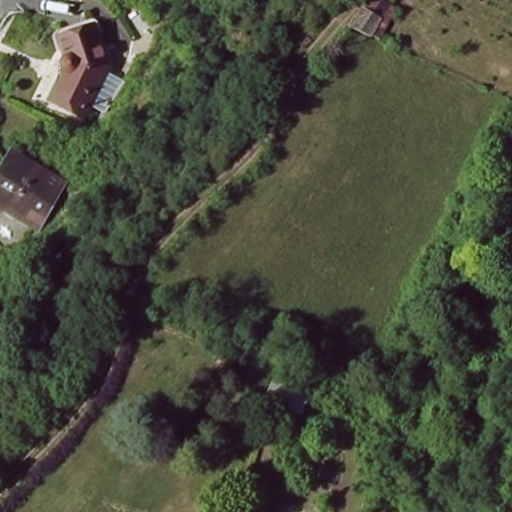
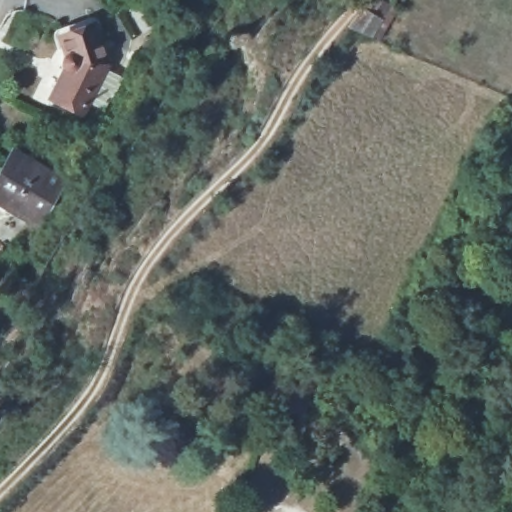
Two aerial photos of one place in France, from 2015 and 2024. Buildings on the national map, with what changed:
unchanged [(364,0),(385,0),(392,4),(378,32),(350,20),(364,0)]
unchanged [(98,26),(103,43),(110,61),(93,98),(76,92),(61,87),(73,56),(68,38),(98,26)]
unchanged [(28,216),(0,202),(0,171),(13,148),(53,170),(28,216)]
unchanged [(266,395),(278,370),(313,386),(304,409),(266,395)]

